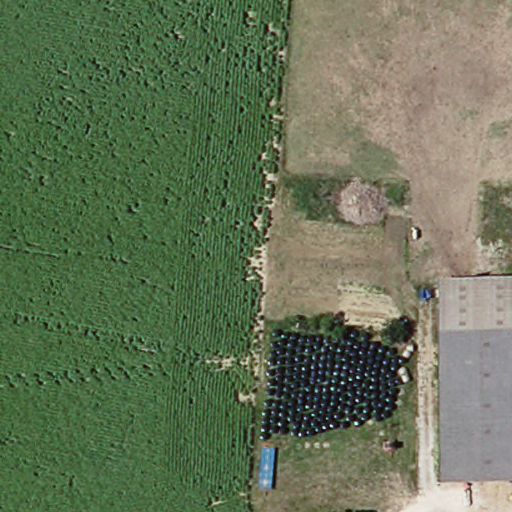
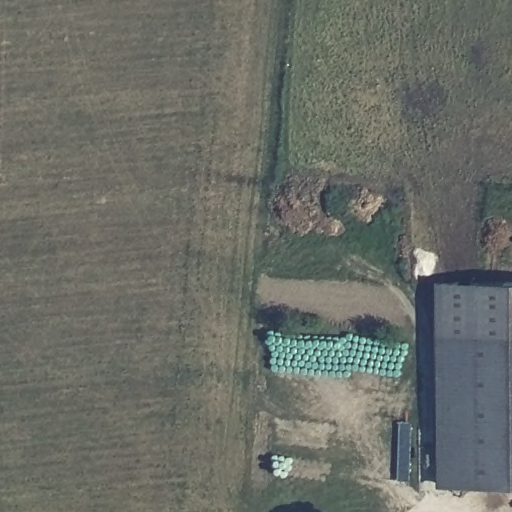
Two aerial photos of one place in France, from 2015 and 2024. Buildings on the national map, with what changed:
unchanged [(439,285),(512,282),(512,485),(444,488),(439,285)]

